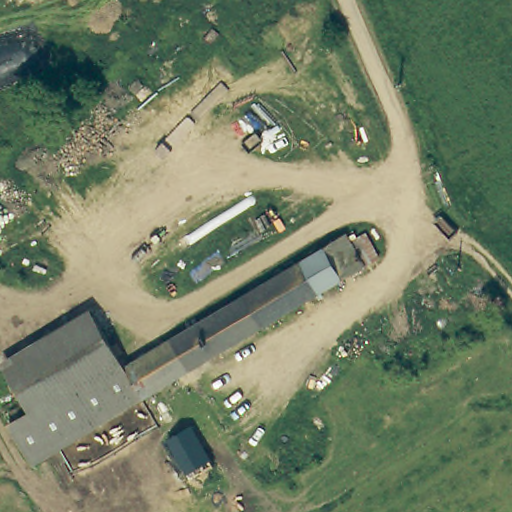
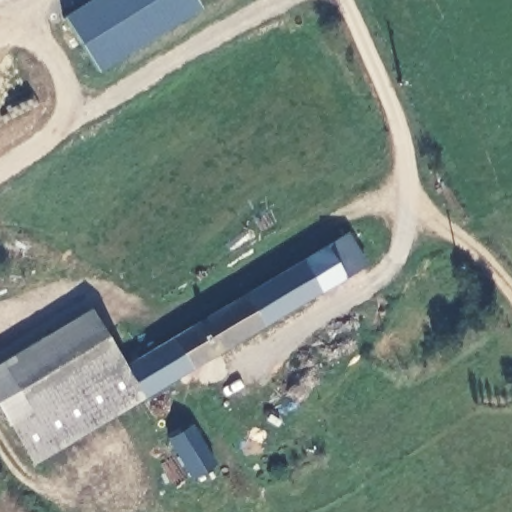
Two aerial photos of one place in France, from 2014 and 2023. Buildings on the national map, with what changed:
new [(99,73),(64,18),(92,0),(195,0),(201,9),(99,73)]
unchanged [(342,234),(361,268),(146,400),(126,368),(342,234)]
new [(0,410),(0,363),(90,309),(94,317),(3,373),(31,417),(11,429),(0,410)]
unchanged [(36,469),(11,429),(31,417),(3,373),(94,317),(116,352),(126,368),(146,400),(96,432),(36,469)]
unchanged [(206,485),(201,484),(197,478),(192,481),(167,437),(192,424),(212,467),(210,469),(215,481),(212,482),(210,484),(206,485)]

